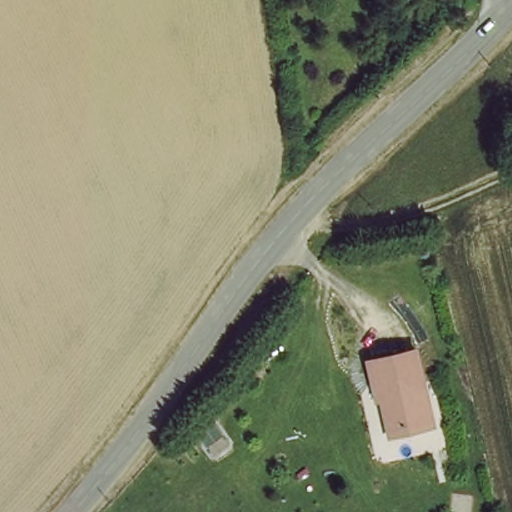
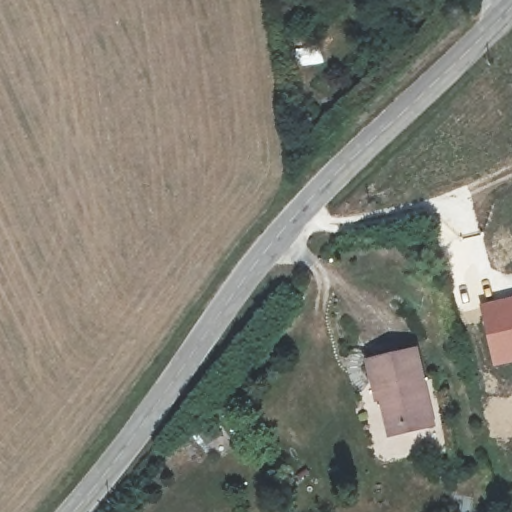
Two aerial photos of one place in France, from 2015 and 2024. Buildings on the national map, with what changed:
new [(496,362),(483,307),(512,301),(512,359),(496,362)]
unchanged [(391,421),(385,394),(377,395),(372,375),(369,357),(416,347),(434,422),(405,428),(394,431),(391,421)]

